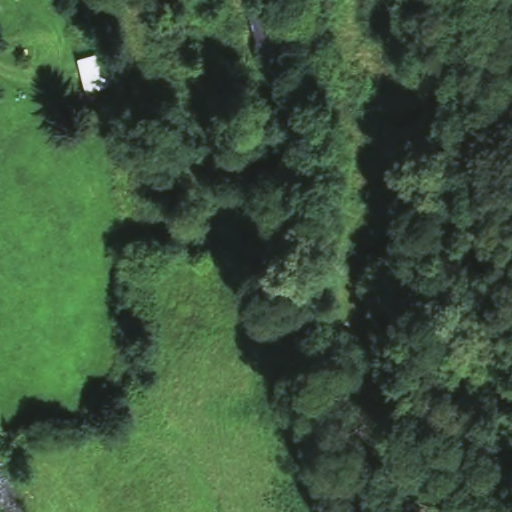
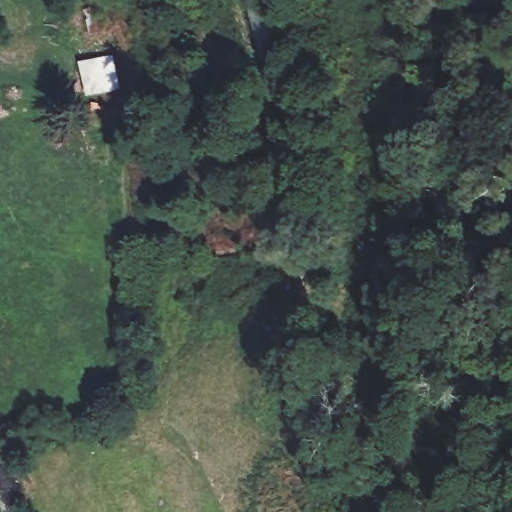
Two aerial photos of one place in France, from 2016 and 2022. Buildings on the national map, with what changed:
unchanged [(259,57),(243,2),(254,0),(271,0),(289,50),(259,57)]

